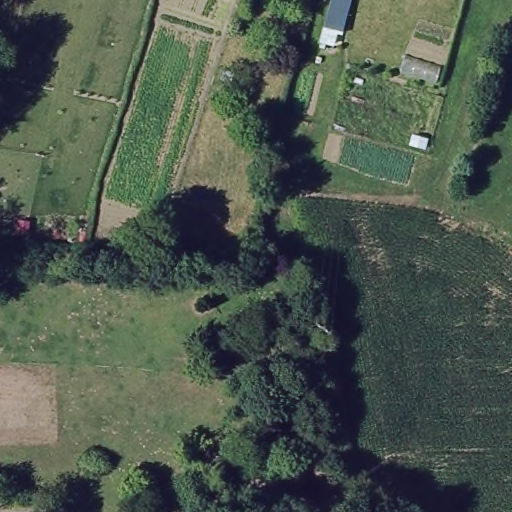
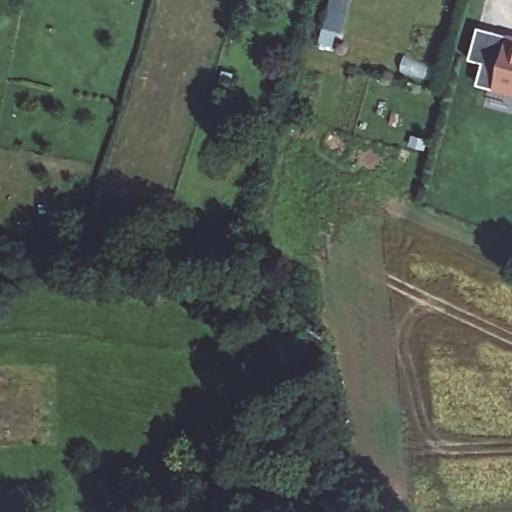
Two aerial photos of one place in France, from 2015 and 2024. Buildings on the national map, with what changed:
unchanged [(339,32),(336,46),(320,42),(330,0),(353,0),(344,34),(339,32)]
new [(512,95),(478,84),(484,61),(470,57),(478,28),(512,37),(512,95)]
new [(413,135),(426,137),(424,147),(411,144),(413,135)]

